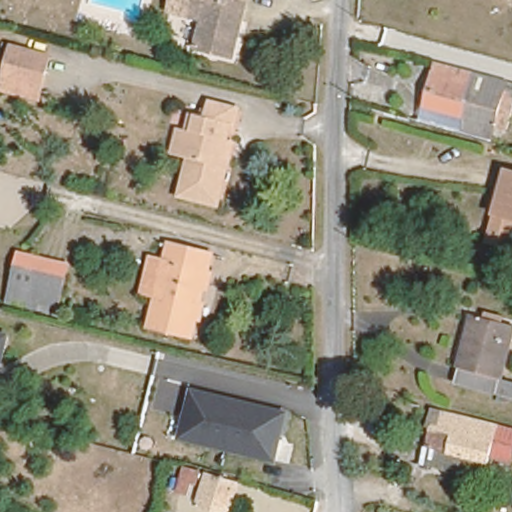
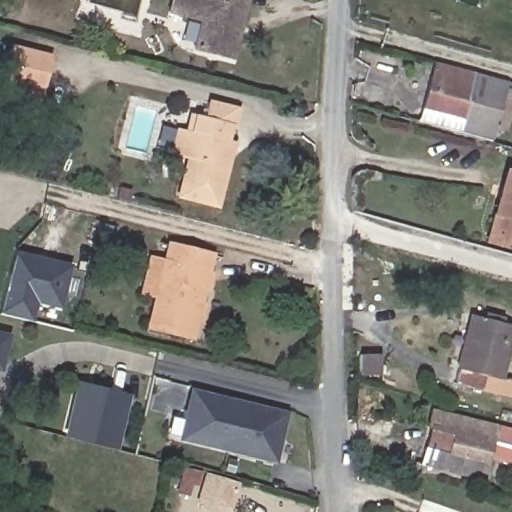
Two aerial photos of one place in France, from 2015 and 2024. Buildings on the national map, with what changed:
unchanged [(193,42),(201,15),(169,8),(171,0),(244,0),(231,53),(193,42)]
unchanged [(8,82),(10,73),(18,40),(55,49),(46,82),(44,91),(8,82)]
unchanged [(418,107),(432,58),(504,77),(512,79),(512,103),(505,129),(490,126),(487,138),(415,119),(418,107)]
unchanged [(199,115),(204,117),(209,100),(235,107),(227,137),(234,139),(232,147),(218,201),(180,191),(189,156),(180,154),(171,152),(177,126),(187,129),(195,131),(199,115)]
unchanged [(476,234),(494,167),(512,171),(512,219),(509,218),(499,240),(496,248),(474,241),(476,234)]
unchanged [(205,251),(188,335),(145,327),(152,294),(136,291),(144,255),(159,258),(162,243),(205,251)]
unchanged [(7,293),(18,248),(50,256),(50,255),(51,251),(70,256),(68,267),(58,306),(7,293)]
unchanged [(512,326),(512,332),(500,379),(512,382),(512,398),(453,383),(470,316),(512,326)]
unchanged [(11,335),(3,375),(0,374),(0,332),(11,335)]
new [(76,383),(130,397),(116,450),(63,437),(76,383)]
unchanged [(275,466),(177,442),(189,390),(290,412),(275,466)]
unchanged [(486,478),(447,468),(423,462),(427,442),(436,407),(512,426),(512,457),(493,452),(486,478)]
unchanged [(228,512),(220,512),(192,503),(202,471),(237,480),(228,512)]
unchanged [(512,500),(510,500),(512,494),(512,500)]
unchanged [(415,512),(412,512),(412,511),(415,512)]

